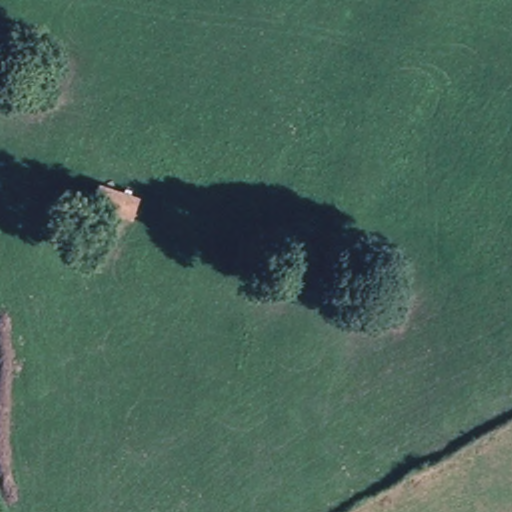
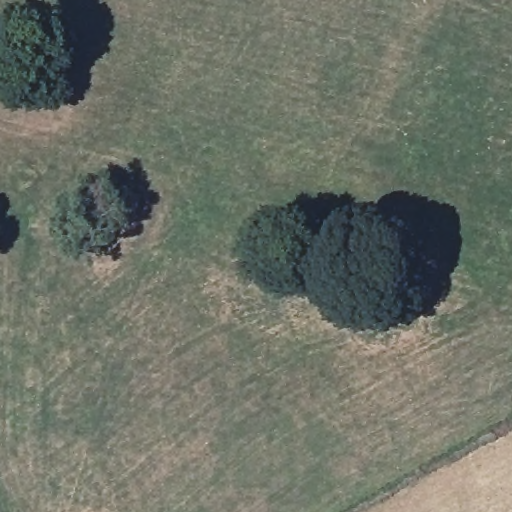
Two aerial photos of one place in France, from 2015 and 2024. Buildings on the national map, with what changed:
unchanged [(101,186),(140,203),(130,227),(91,213),(101,186)]

